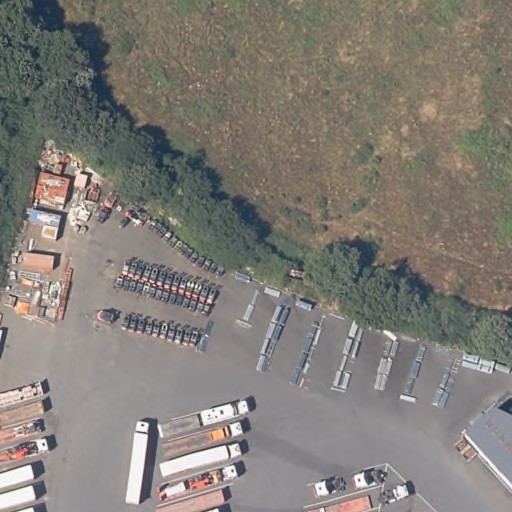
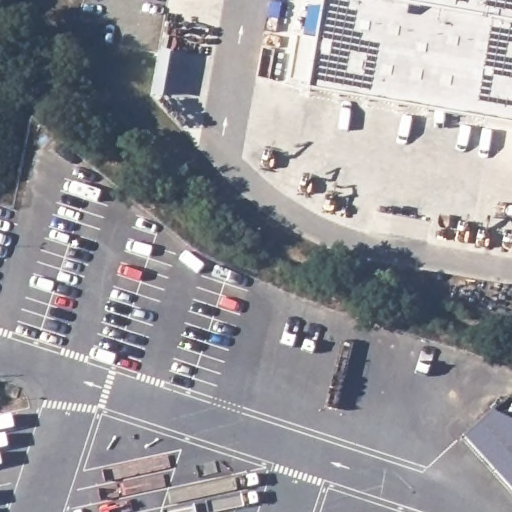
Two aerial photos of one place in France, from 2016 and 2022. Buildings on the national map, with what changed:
new [(307,84),(288,82),(297,36),(313,39),(321,0),(382,0),(386,1),(386,0),(512,0),(512,125),(306,92),(307,84)]
unchanged [(496,408),(512,417),(512,481),(468,433),(496,408)]

